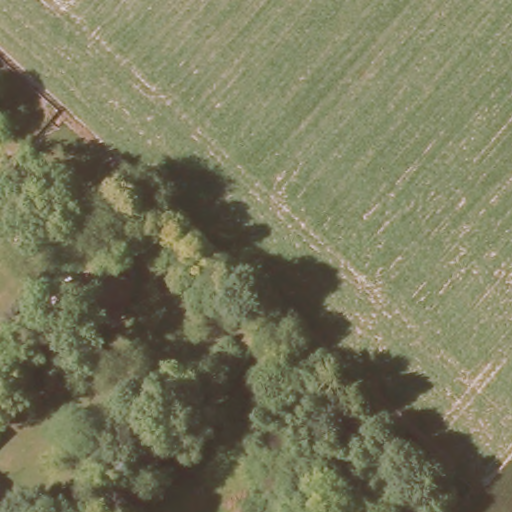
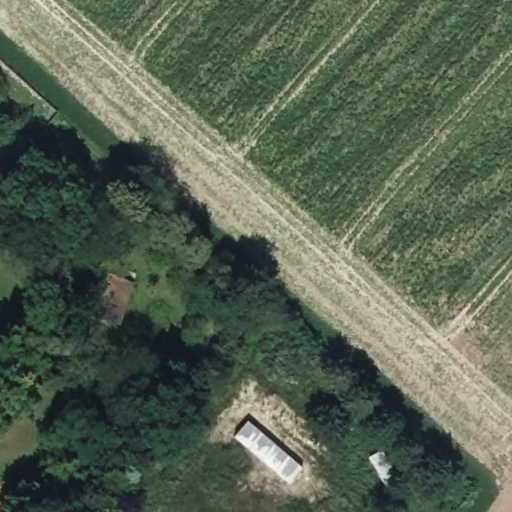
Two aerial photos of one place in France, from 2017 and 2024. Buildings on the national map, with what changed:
unchanged [(70,305),(73,296),(83,267),(132,283),(122,312),(120,321),(70,305)]

